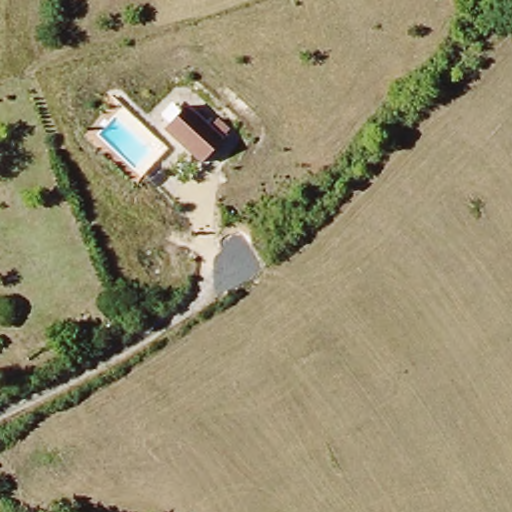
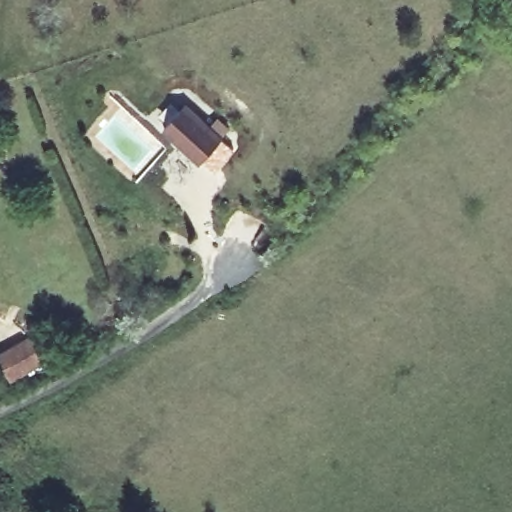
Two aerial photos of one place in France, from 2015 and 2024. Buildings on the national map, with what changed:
unchanged [(163,132),(184,107),(217,139),(200,164),(163,132)]
new [(38,364),(6,379),(0,366),(0,354),(26,341),(38,364)]

